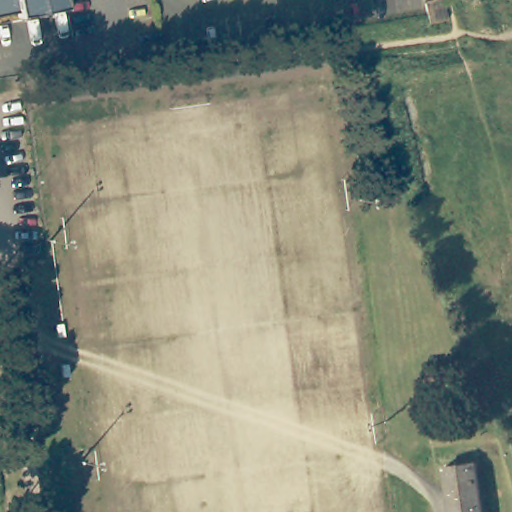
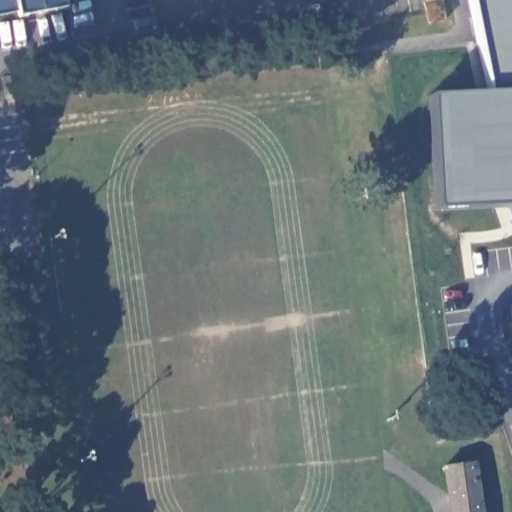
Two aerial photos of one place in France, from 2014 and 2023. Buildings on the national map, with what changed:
unchanged [(0,17),(0,0),(79,0),(62,3),(64,12),(18,20),(17,13),(0,17)]
unchanged [(423,0),(441,0),(443,12),(426,15),(423,0)]
new [(435,209),(430,95),(487,93),(469,0),(512,0),(512,213),(508,205),(435,209)]
unchanged [(475,462),(481,512),(449,512),(443,467),(475,462)]

